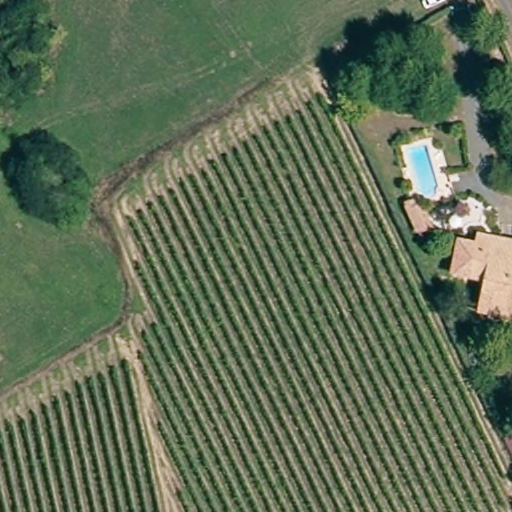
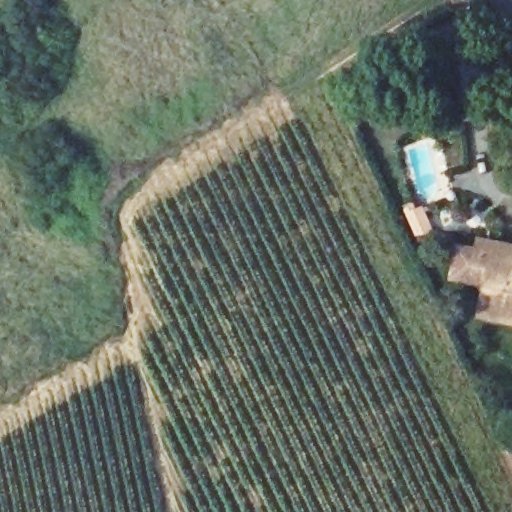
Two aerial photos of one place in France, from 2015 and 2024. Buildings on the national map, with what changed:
unchanged [(430,214),(438,233),(423,236),(417,222),(411,210),(418,207),(421,213),(428,210),(430,214)]
unchanged [(512,323),(487,319),(492,285),(473,283),(480,243),(512,248),(512,323)]

